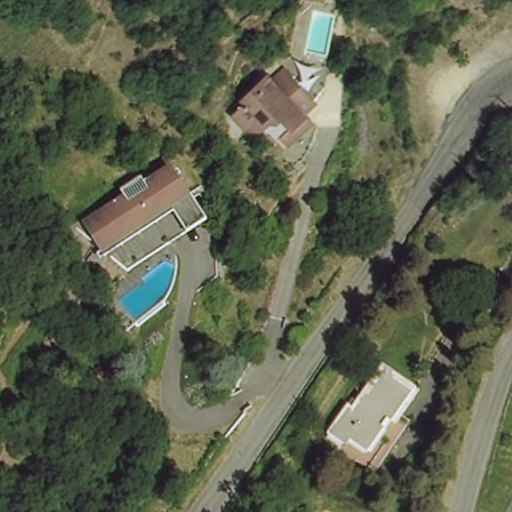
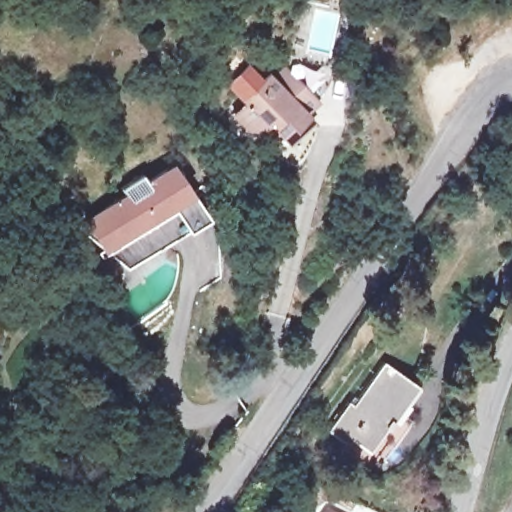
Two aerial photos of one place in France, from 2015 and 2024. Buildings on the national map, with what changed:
unchanged [(296,118),(305,127),(281,149),(275,142),(286,131),(272,116),(255,132),(240,133),(228,119),(240,107),(237,103),(262,80),(267,85),(279,74),(309,106),(296,118)]
unchanged [(188,193),(190,192),(207,218),(170,242),(126,269),(101,249),(99,246),(75,226),(124,195),(120,189),(141,175),(146,181),(170,166),(188,193)]
unchanged [(393,351),(419,379),(400,397),(410,410),(367,451),(361,447),(357,450),(323,415),(326,412),(322,406),(350,381),(356,387),(393,351)]

